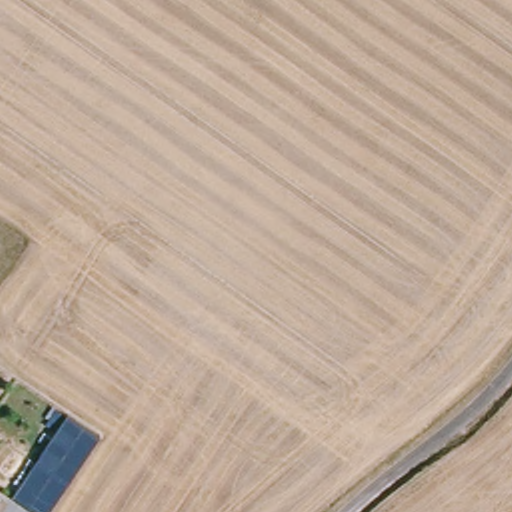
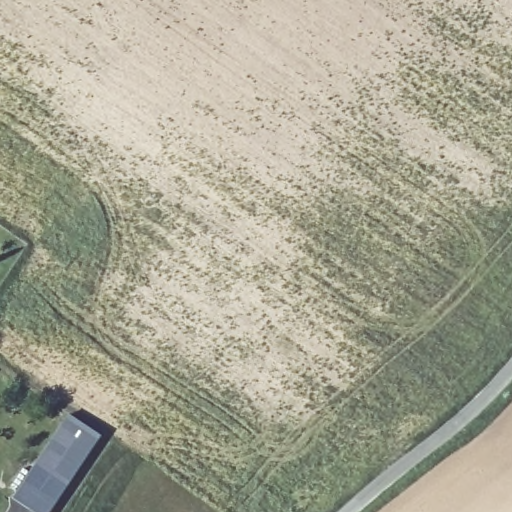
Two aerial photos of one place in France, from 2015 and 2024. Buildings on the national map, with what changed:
unchanged [(50,512),(37,512),(12,494),(68,413),(103,435),(50,512)]

